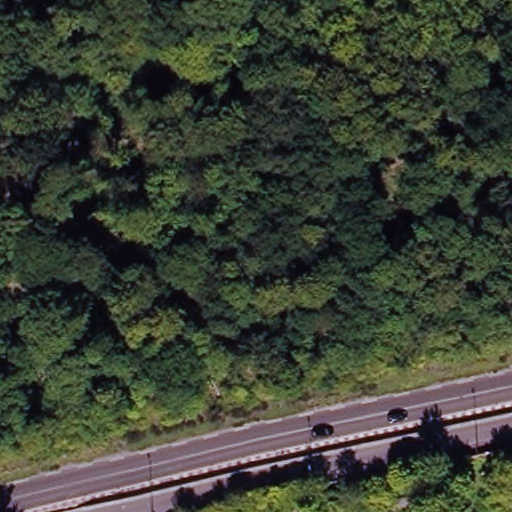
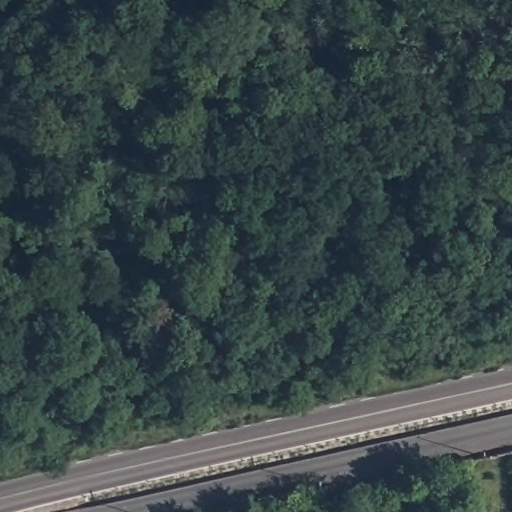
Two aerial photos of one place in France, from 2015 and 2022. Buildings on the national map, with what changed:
unchanged [(387,512),(385,507),(426,500),(428,512),(387,512)]

